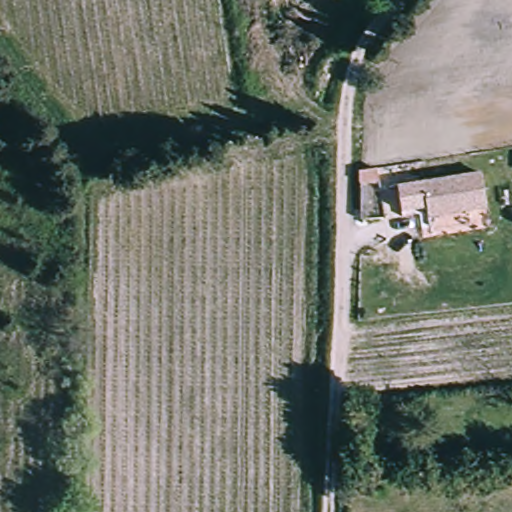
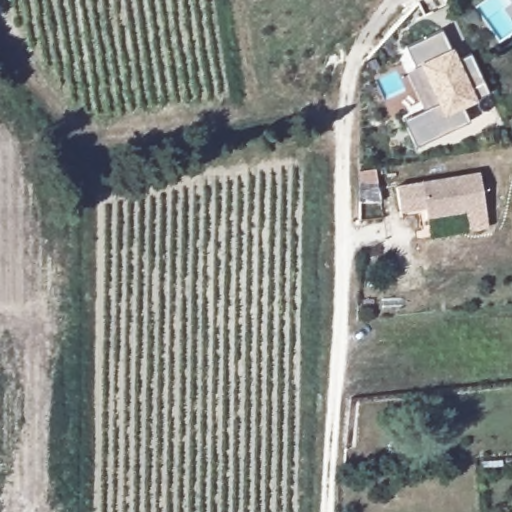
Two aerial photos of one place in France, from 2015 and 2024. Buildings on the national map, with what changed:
new [(441,30),(469,89),(483,82),(489,94),(462,107),(469,122),(414,148),(399,114),(420,104),(395,52),(441,30)]
unchanged [(412,189),(471,179),(476,214),(418,224),(412,189)]

